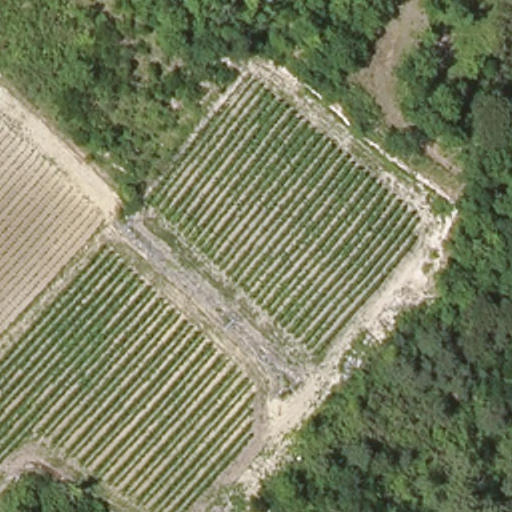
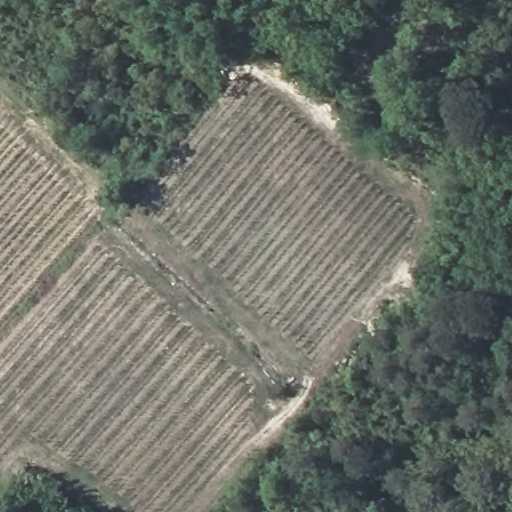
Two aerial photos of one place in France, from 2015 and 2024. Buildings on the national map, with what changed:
unchanged [(50,483),(41,496),(30,487),(37,476),(50,483)]

